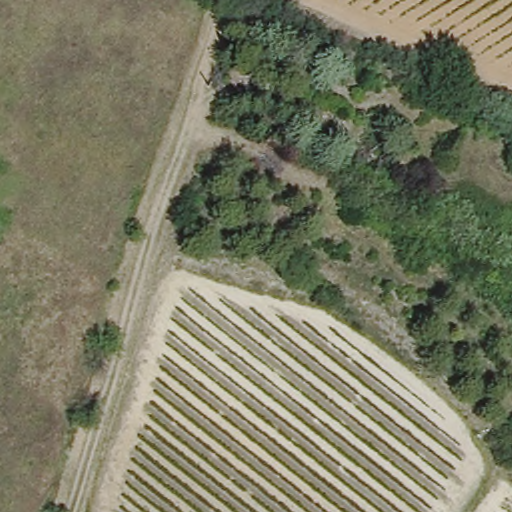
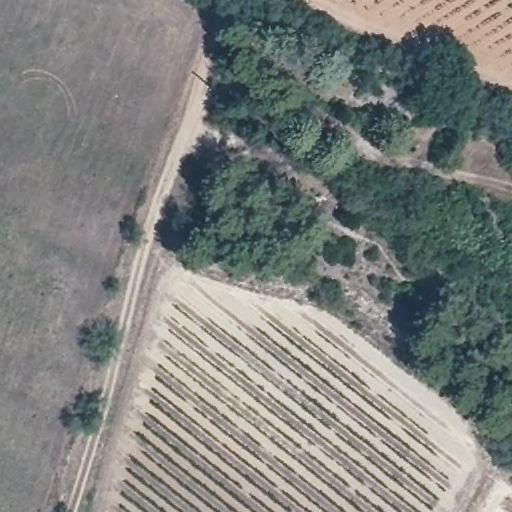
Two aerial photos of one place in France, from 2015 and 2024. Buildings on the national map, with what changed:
unchanged [(356,90),(349,104),(328,94),(336,79),(356,90)]

